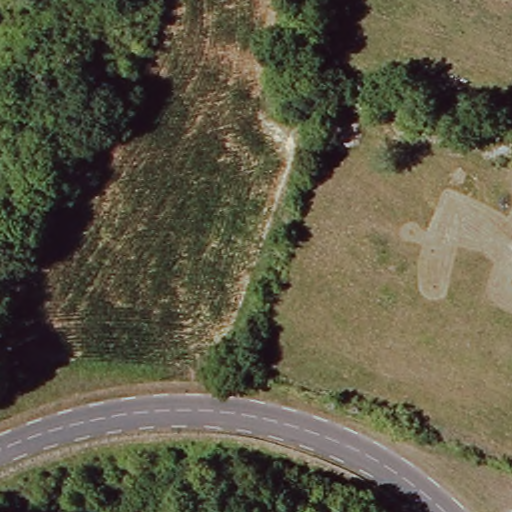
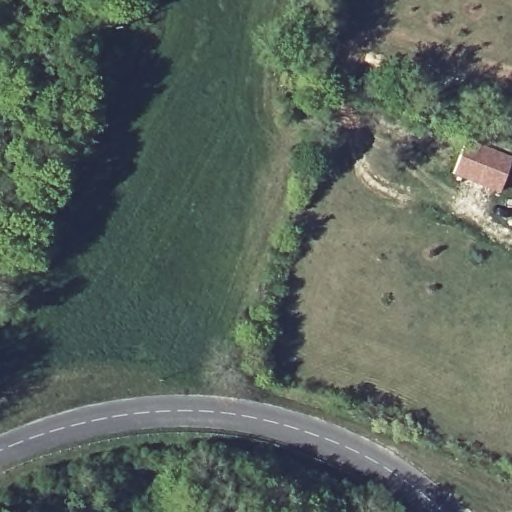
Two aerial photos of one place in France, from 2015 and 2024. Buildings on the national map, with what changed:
new [(455,173),(471,140),(512,157),(512,160),(501,190),(455,173)]

